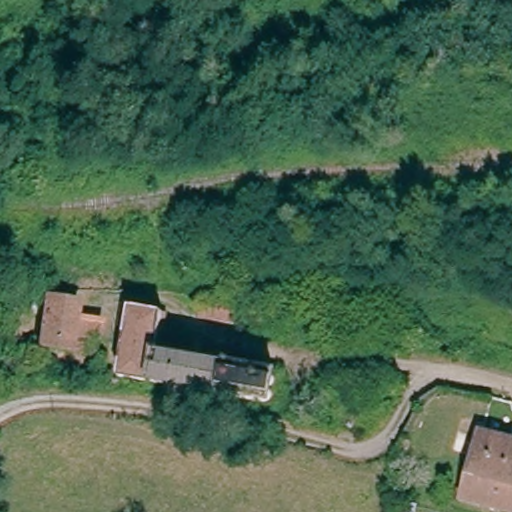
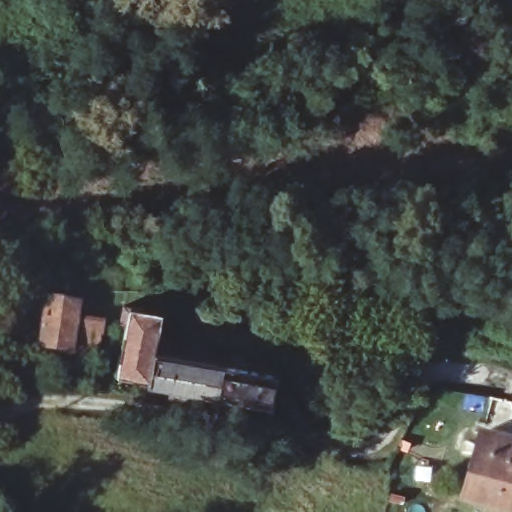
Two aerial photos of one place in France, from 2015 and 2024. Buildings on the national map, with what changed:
unchanged [(234,303),(231,319),(219,317),(218,320),(196,317),(199,297),(234,303)]
unchanged [(73,304),(71,320),(97,324),(92,355),(35,347),(42,299),(73,304)]
unchanged [(162,312),(158,340),(164,341),(170,348),(169,354),(186,356),(277,370),(272,399),(237,394),(236,408),(218,405),(220,392),(190,387),(189,396),(170,393),(169,398),(164,397),(166,383),(119,376),(118,376),(126,328),(120,327),(122,306),(162,312)]
unchanged [(108,378),(119,379),(117,390),(107,389),(108,378)]
unchanged [(338,437),(339,431),(337,430),(345,391),(390,399),(386,422),(362,435),(357,434),(356,440),(338,437)]
unchanged [(480,431),(512,440),(512,508),(463,495),(480,431)]
unchanged [(410,441),(407,450),(397,447),(400,438),(410,441)]
unchanged [(418,505),(416,512),(397,512),(400,501),(418,505)]

